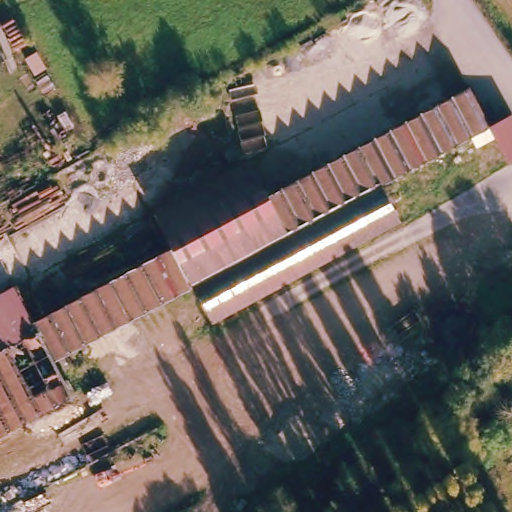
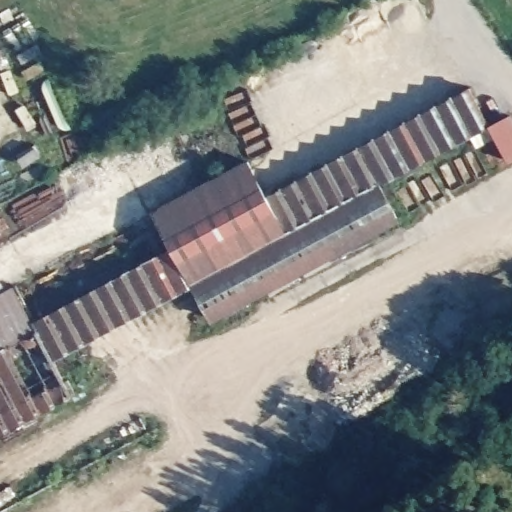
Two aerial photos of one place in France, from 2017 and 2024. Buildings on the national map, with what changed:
unchanged [(13,287),(31,317),(171,237),(155,210),(247,157),(265,188),(467,85),(487,127),(380,185),(399,221),(214,321),(193,282),(55,358),(75,397),(0,437),(0,294),(13,287)]
unchanged [(512,114),(512,157),(506,160),(491,125),(512,114)]

